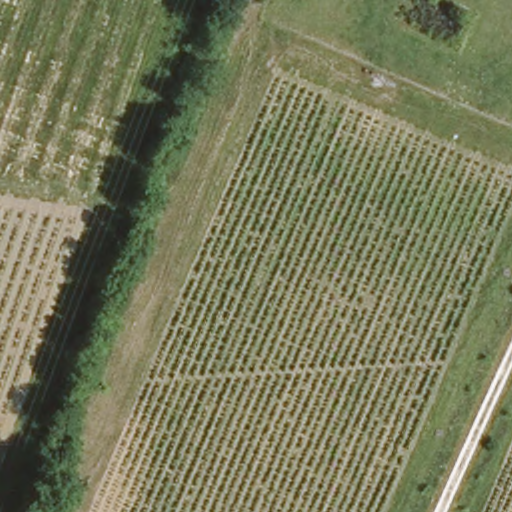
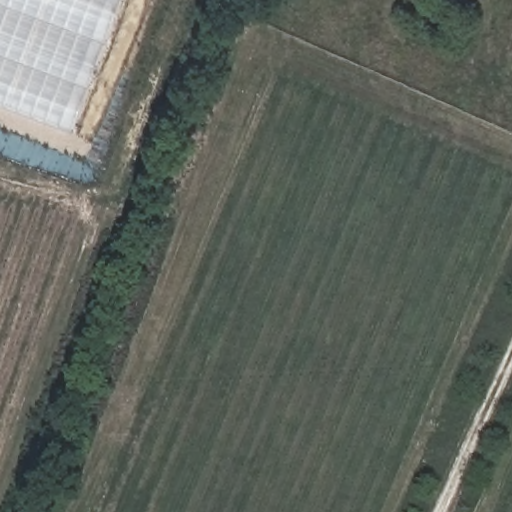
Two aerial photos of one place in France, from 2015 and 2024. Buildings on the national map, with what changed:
new [(71,133),(0,107),(0,0),(121,0),(71,133)]

